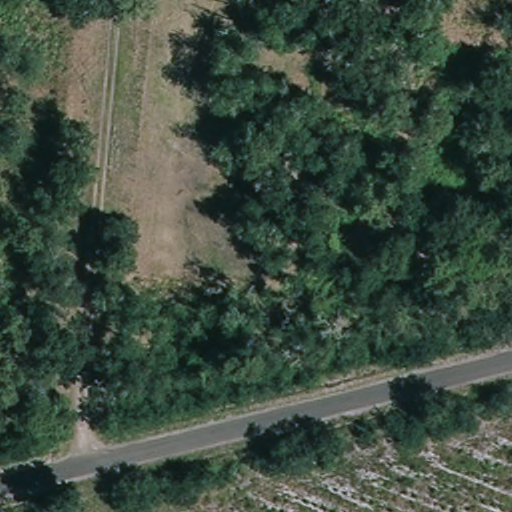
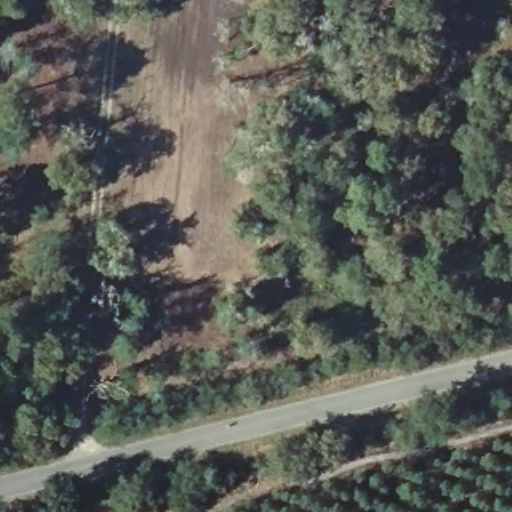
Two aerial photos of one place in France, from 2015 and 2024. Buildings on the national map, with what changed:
[]

